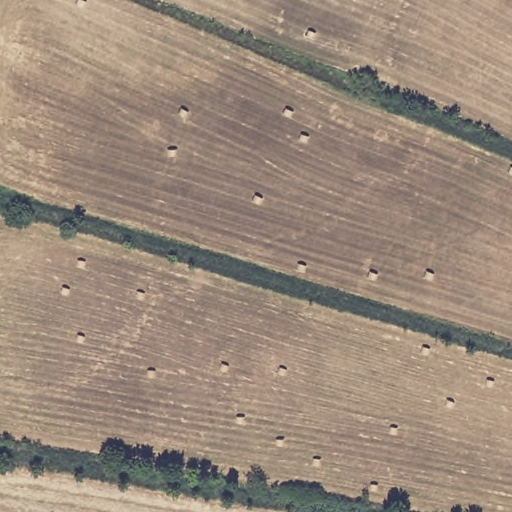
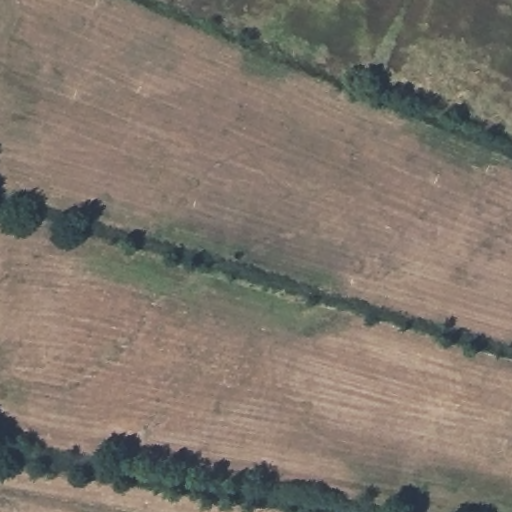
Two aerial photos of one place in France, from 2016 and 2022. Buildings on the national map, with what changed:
[]

